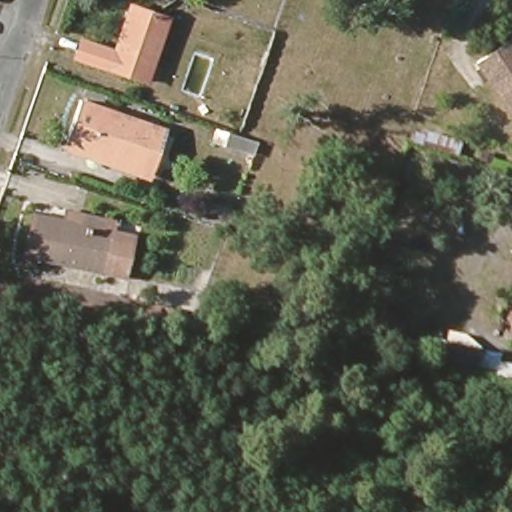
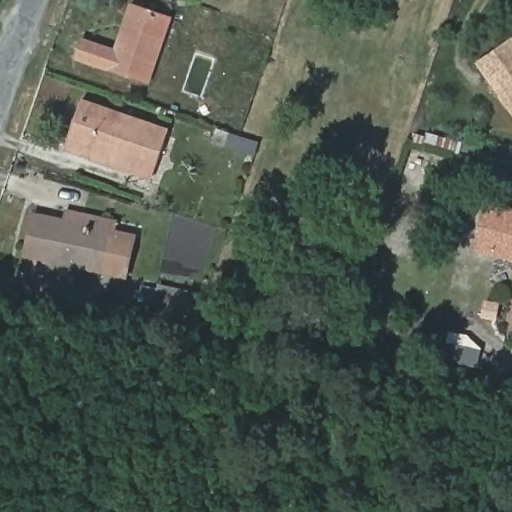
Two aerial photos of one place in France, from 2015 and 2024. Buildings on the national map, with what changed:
unchanged [(83,56),(90,39),(116,49),(132,4),(174,18),(151,81),(83,56)]
unchanged [(512,38),(512,111),(476,65),(512,38)]
unchanged [(83,154),(85,146),(65,139),(77,107),(166,139),(153,177),(83,154)]
new [(487,201),(512,208),(512,254),(474,243),(487,201)]
unchanged [(127,277),(27,256),(35,212),(66,219),(68,209),(117,219),(115,229),(137,232),(127,277)]
unchanged [(441,366),(445,353),(474,360),(472,373),(441,366)]

